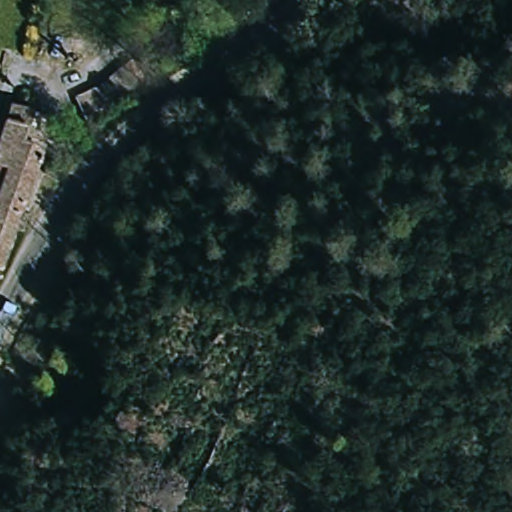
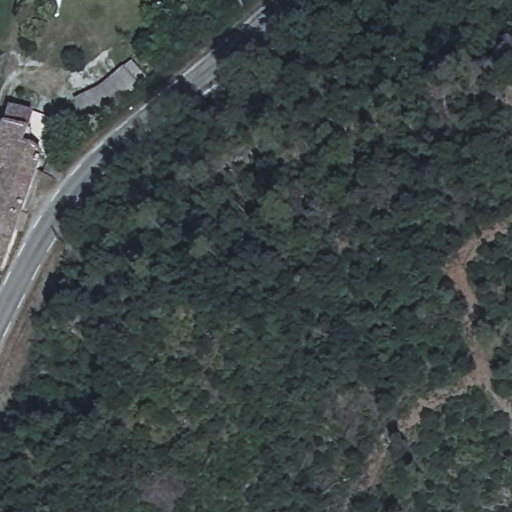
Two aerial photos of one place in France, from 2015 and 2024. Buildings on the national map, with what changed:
unchanged [(84,89),(98,104),(77,123),(63,107),(84,89)]
unchanged [(19,215),(0,207),(0,205),(8,180),(0,174),(0,154),(5,134),(6,131),(22,136),(19,147),(35,161),(19,215)]
unchanged [(3,269),(0,268),(0,207),(19,215),(3,269)]

